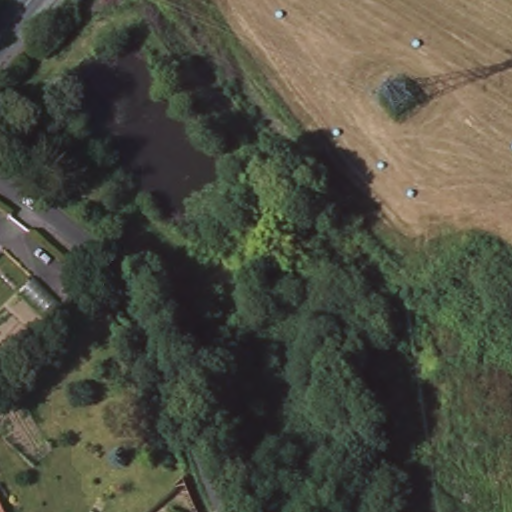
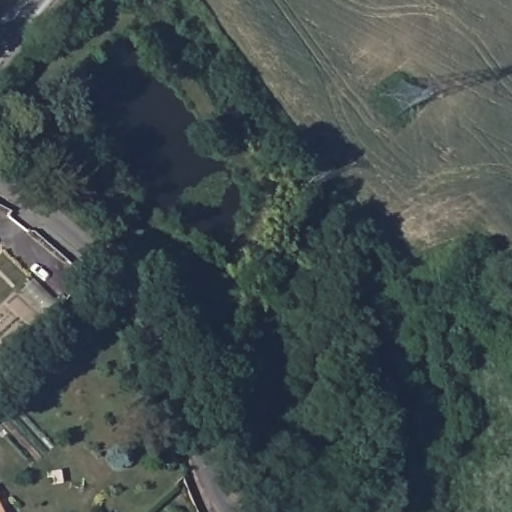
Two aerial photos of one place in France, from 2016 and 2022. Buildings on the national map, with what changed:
unchanged [(0,512),(0,498),(7,512),(0,512)]

